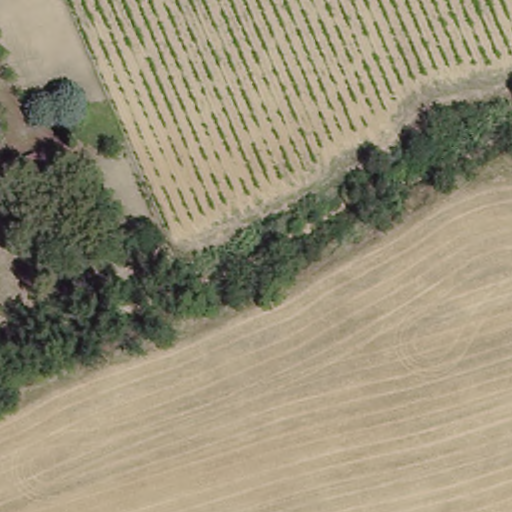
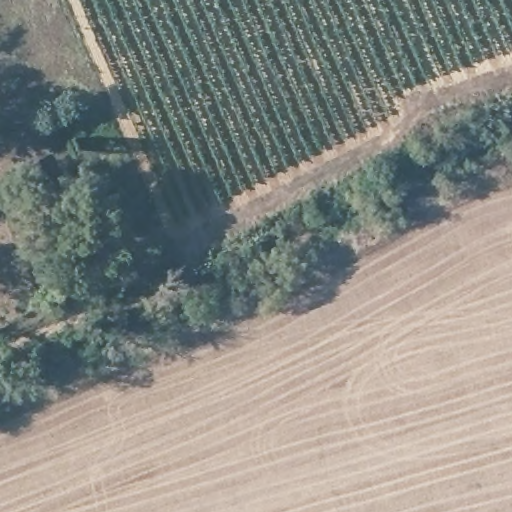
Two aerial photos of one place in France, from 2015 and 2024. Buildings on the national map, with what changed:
unchanged [(38,167),(18,175),(10,156),(30,146),(38,167)]

